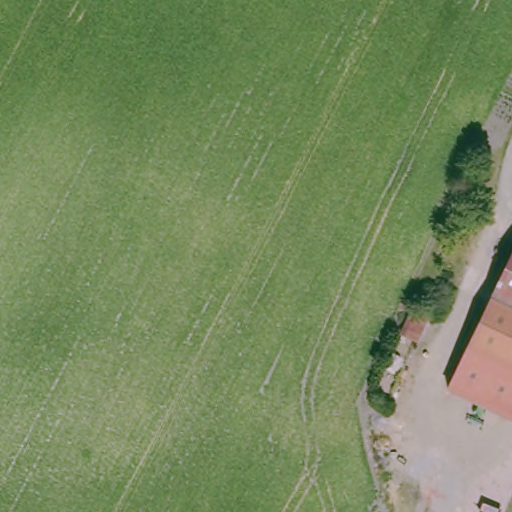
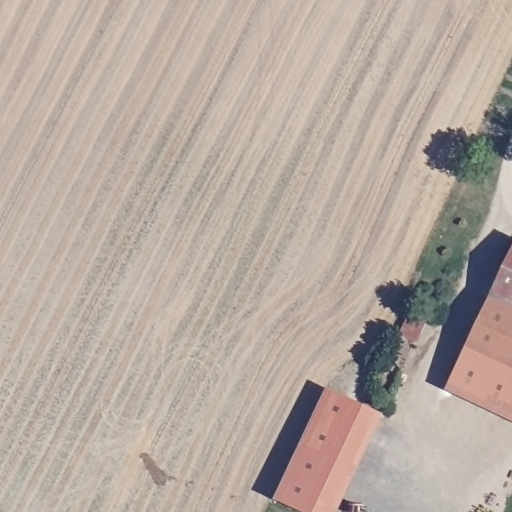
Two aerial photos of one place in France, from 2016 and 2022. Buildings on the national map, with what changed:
unchanged [(489,287),(512,236),(512,299),(489,287)]
unchanged [(443,392),(489,287),(512,299),(512,423),(443,392)]
new [(278,498),(329,389),(385,414),(339,512),(307,512),(278,498)]

